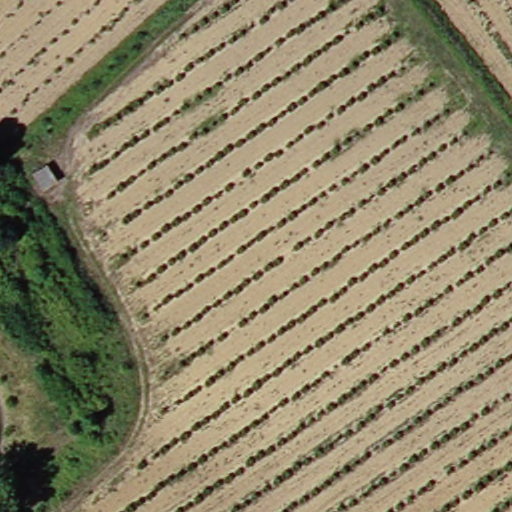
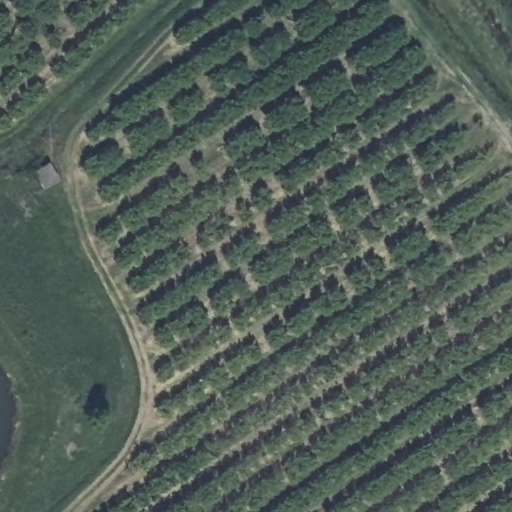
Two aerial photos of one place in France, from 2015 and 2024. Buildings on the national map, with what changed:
unchanged [(73,200),(58,209),(47,194),(63,184),(73,200)]

